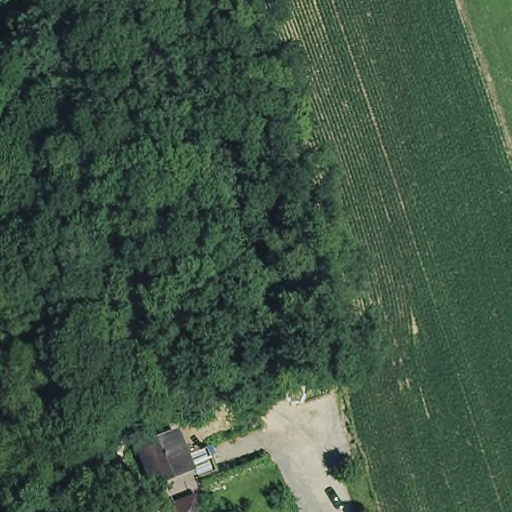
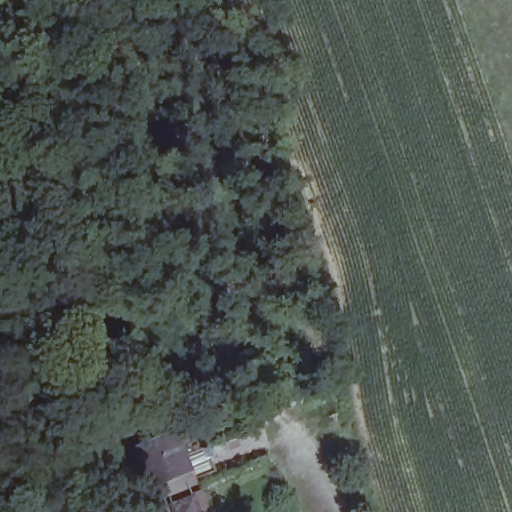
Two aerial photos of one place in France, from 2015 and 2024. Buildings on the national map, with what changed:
unchanged [(217,464),(197,473),(192,461),(155,477),(141,443),(178,428),(187,449),(208,441),(217,464)]

